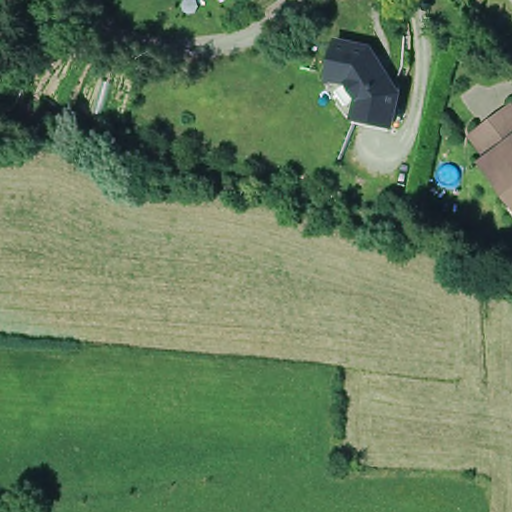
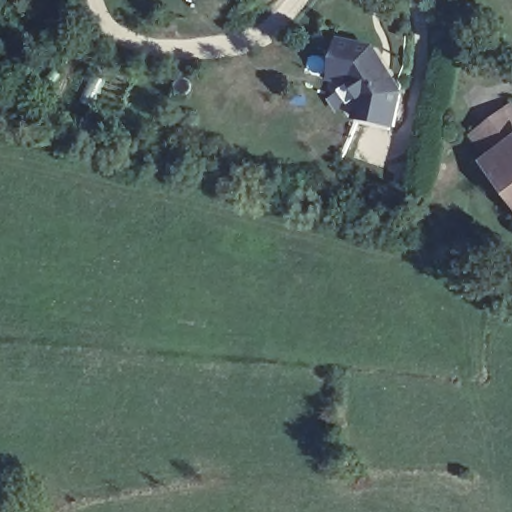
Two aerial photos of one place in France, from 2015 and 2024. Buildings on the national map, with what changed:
unchanged [(382,49),(405,87),(392,132),(353,122),(330,87),(339,39),(382,49)]
unchanged [(495,156),(479,134),(512,108),(512,189),(490,160),(495,156)]

